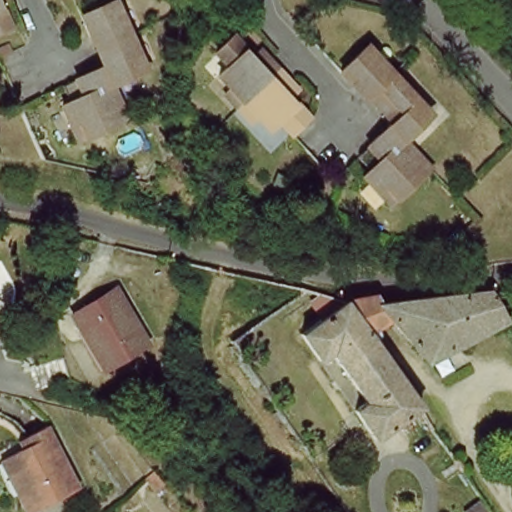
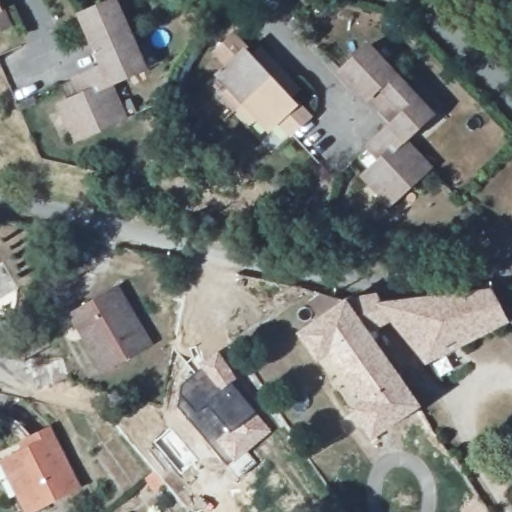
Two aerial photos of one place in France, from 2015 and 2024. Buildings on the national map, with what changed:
unchanged [(0,25),(0,0),(2,0),(11,20),(0,25)]
unchanged [(96,42),(83,19),(116,1),(131,29),(104,42),(96,42)]
unchanged [(131,29),(152,68),(115,86),(105,65),(111,58),(104,42),(131,29)]
unchanged [(233,90),(238,82),(223,64),(230,57),(221,47),(236,31),(262,55),(269,47),(275,53),(283,60),(243,99),(233,90)]
unchanged [(355,76),(350,81),(336,68),(364,41),(393,67),(369,90),(355,76)]
unchanged [(283,60),(299,76),(290,84),(316,110),(301,124),(292,116),(285,124),(266,106),(259,113),(243,99),(283,60)]
unchanged [(115,86),(133,119),(83,144),(65,113),(89,100),(78,77),(105,65),(115,86)]
unchanged [(393,67),(430,101),(402,132),(389,120),(408,101),(392,87),(376,105),(364,94),(369,90),(393,67)]
unchanged [(402,132),(433,161),(395,203),(364,177),(378,161),(366,148),(364,145),(389,120),(402,132)]
unchanged [(101,367),(76,306),(125,285),(150,346),(101,367)]
unchanged [(472,287),(485,286),(511,317),(434,362),(402,316),(389,297),(472,287)]
unchanged [(402,316),(376,334),(415,394),(427,412),(378,447),(359,415),(369,406),(337,357),(324,366),(303,334),(352,292),(382,289),(389,297),(402,316)]
new [(180,385),(200,365),(218,349),(238,377),(232,381),(256,412),(210,446),(175,404),(176,404),(176,398),(180,385)]
unchanged [(86,372),(88,393),(55,397),(51,374),(86,372)]
new [(256,412),(272,430),(247,452),(256,463),(238,478),(210,446),(256,412)]
unchanged [(38,512),(27,512),(4,451),(57,431),(83,494),(38,512)]
unchanged [(479,512),(475,512),(478,510),(479,512)]

